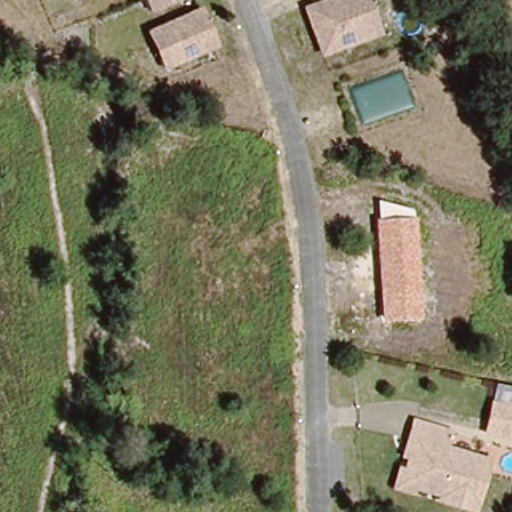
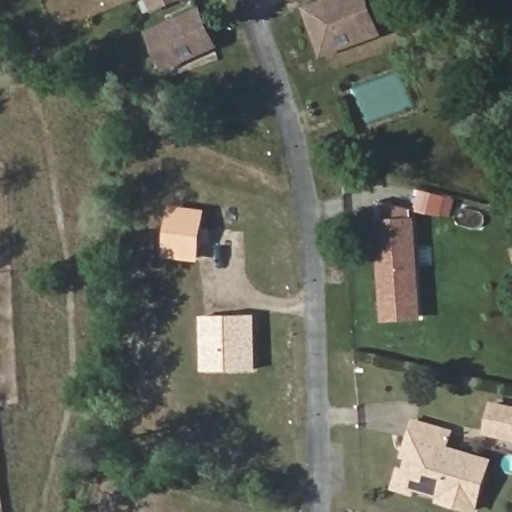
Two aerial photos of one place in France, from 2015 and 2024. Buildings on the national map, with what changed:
unchanged [(147,0),(181,0),(150,13),(147,0)]
unchanged [(322,58),(304,9),(326,0),(371,0),(385,36),(322,58)]
unchanged [(222,48),(166,71),(149,33),(202,8),(222,48)]
new [(204,210),(198,262),(164,258),(170,205),(204,210)]
unchanged [(423,321),(384,323),(373,220),(415,217),(423,321)]
new [(256,371),(203,372),(202,316),(256,315),(256,371)]
unchanged [(512,406),(512,441),(485,436),(494,403),(512,406)]
unchanged [(454,430),(450,445),(494,459),(478,512),(470,512),(436,503),(436,498),(415,492),(414,496),(393,489),(399,467),(404,467),(407,460),(401,458),(416,419),(454,430)]

